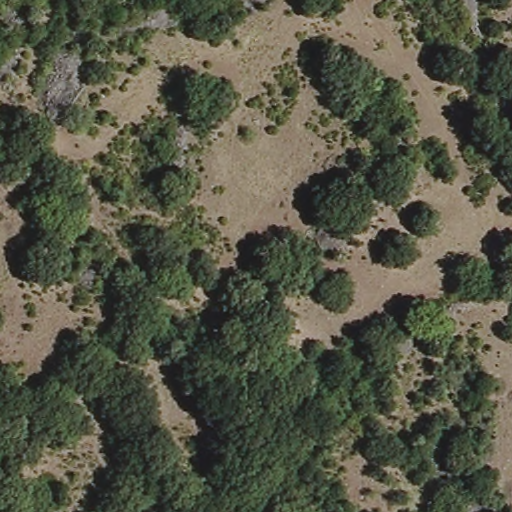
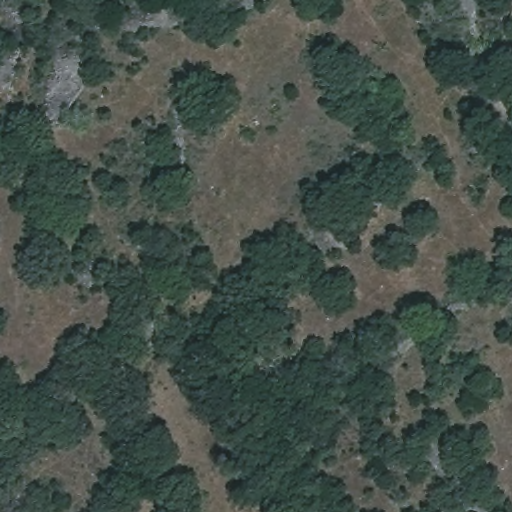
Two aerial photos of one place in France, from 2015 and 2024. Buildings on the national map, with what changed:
[]

